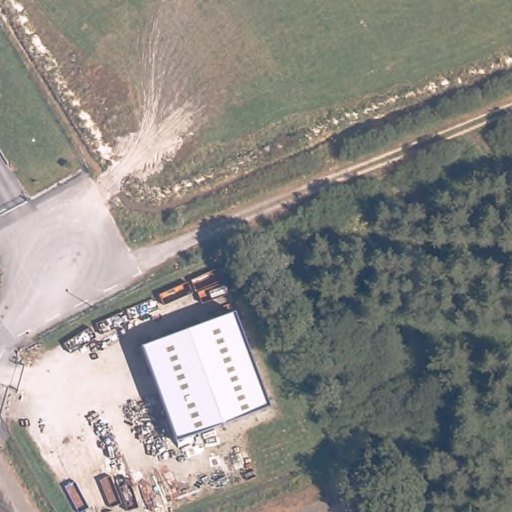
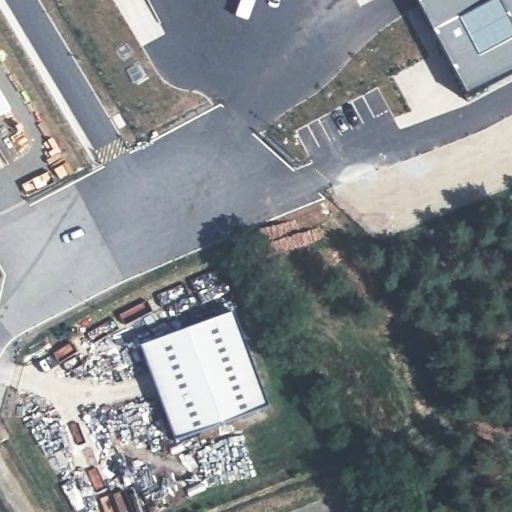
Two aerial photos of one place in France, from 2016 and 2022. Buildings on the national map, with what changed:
new [(467,102),(413,0),(512,0),(512,78),(467,102)]
unchanged [(233,314),(268,409),(174,443),(139,348),(233,314)]

